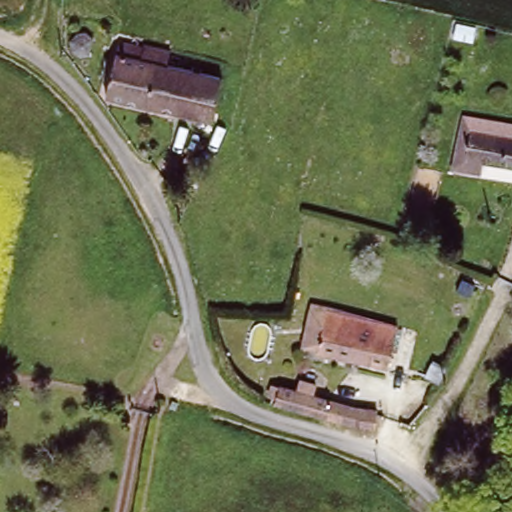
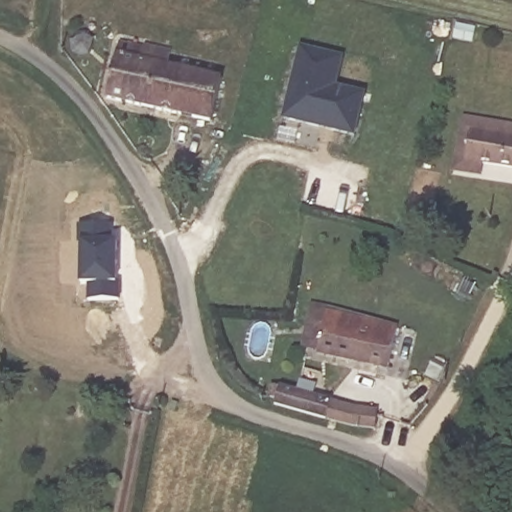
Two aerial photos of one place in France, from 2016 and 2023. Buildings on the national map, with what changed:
unchanged [(172,51),(169,64),(222,77),(213,118),(109,96),(120,40),(172,51)]
new [(338,84),(368,91),(356,136),(282,119),(300,44),(346,55),(338,84)]
unchanged [(512,136),(467,131),(464,161),(477,162),(476,173),(449,169),(457,117),(512,125),(512,136)]
unchanged [(464,161),(467,131),(512,136),(512,167),(477,162),(464,161)]
new [(112,228),(113,245),(118,245),(119,267),(116,269),(117,279),(120,279),(120,285),(122,285),(122,302),(91,303),(91,286),(83,286),(83,247),(80,247),(80,228),(112,228)]
unchanged [(400,364),(335,344),(335,342),(320,337),(330,302),(346,307),(412,327),(400,364)]
unchanged [(332,409),(330,417),(278,403),(280,396),(284,385),(302,390),(303,383),(315,386),(314,393),(334,399),(332,409)]
unchanged [(377,417),(374,430),(373,433),(354,428),(355,422),(358,412),(377,417)]

